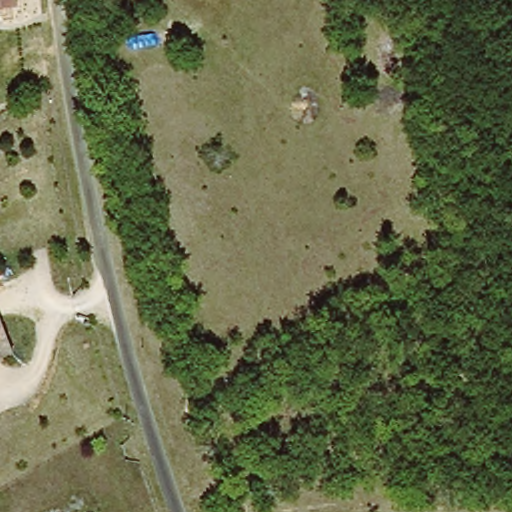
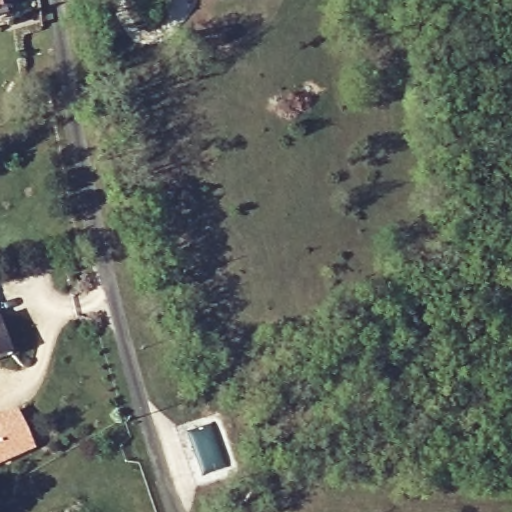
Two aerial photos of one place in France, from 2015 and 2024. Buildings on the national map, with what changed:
unchanged [(19,7),(0,9),(0,0),(18,0),(19,7)]
unchanged [(0,356),(0,322),(12,350),(0,356)]
new [(35,448),(0,464),(0,416),(15,409),(35,448)]

